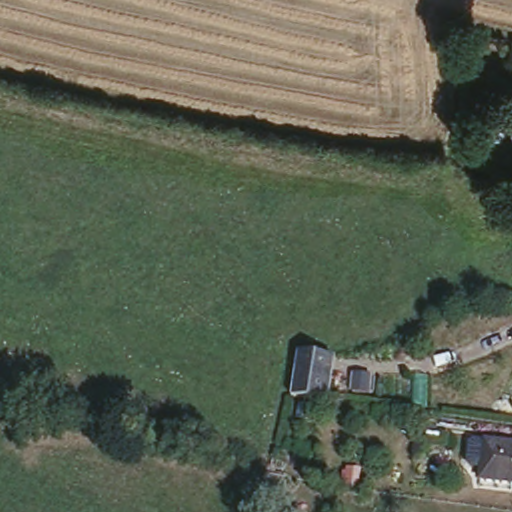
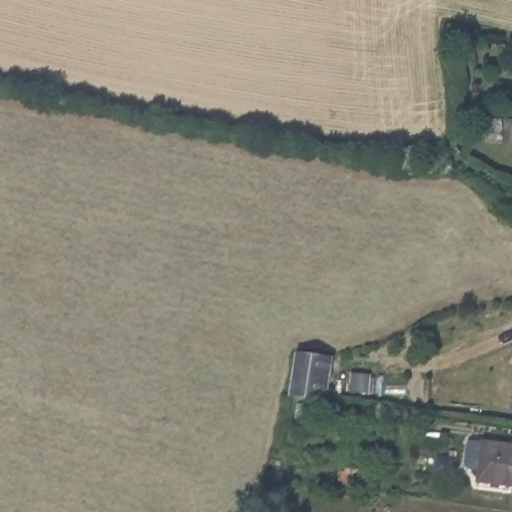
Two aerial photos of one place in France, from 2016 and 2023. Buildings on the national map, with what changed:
unchanged [(332,347),(325,392),(291,388),(296,343),(332,347)]
unchanged [(477,462),(474,458),(477,440),(482,437),(493,438),(512,440),(512,480),(487,476),(488,465),(477,462)]

